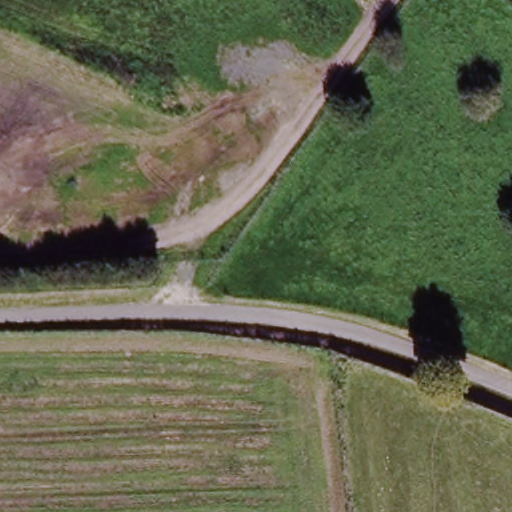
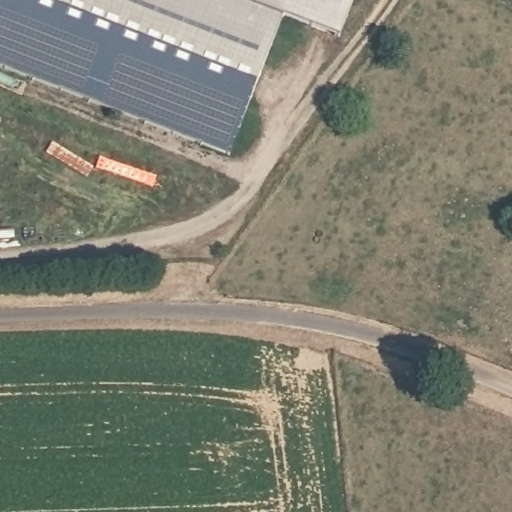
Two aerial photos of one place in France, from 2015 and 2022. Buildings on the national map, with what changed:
new [(286,17),(231,155),(0,65),(0,0),(355,0),(341,38),(286,17)]

